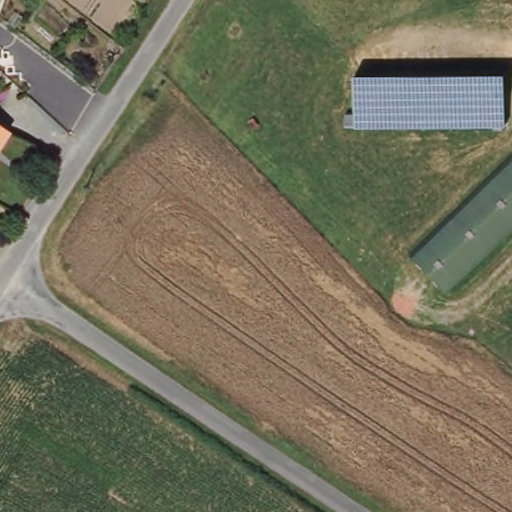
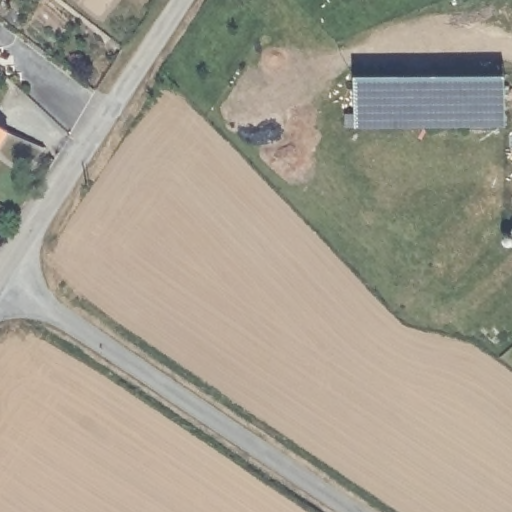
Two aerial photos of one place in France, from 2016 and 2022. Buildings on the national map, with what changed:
unchanged [(507,74),(506,128),(355,128),(354,74),(507,74)]
unchanged [(0,151),(0,128),(10,136),(5,143),(0,151)]
demolished [(512,206),(489,184),(512,161),(512,206)]
demolished [(512,232),(498,246),(481,230),(457,252),(438,235),(489,184),(512,206),(512,232)]
demolished [(450,293),(416,256),(438,235),(457,252),(481,230),(498,246),(450,293)]

